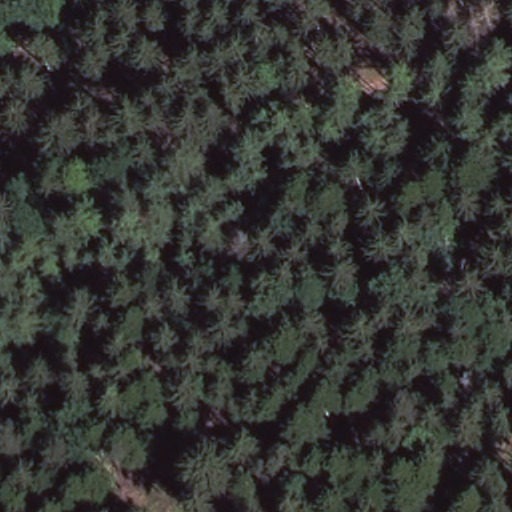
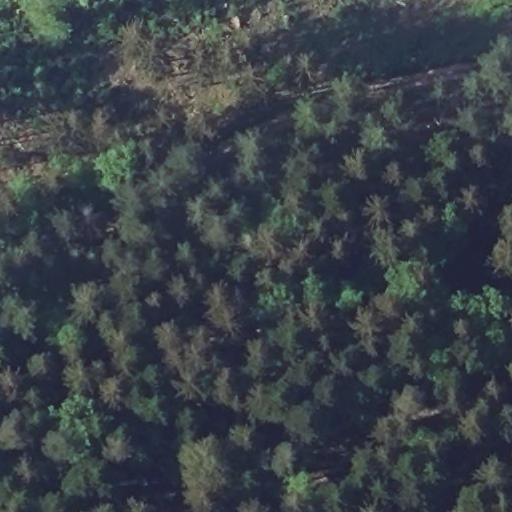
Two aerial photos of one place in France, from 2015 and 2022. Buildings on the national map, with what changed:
[]

